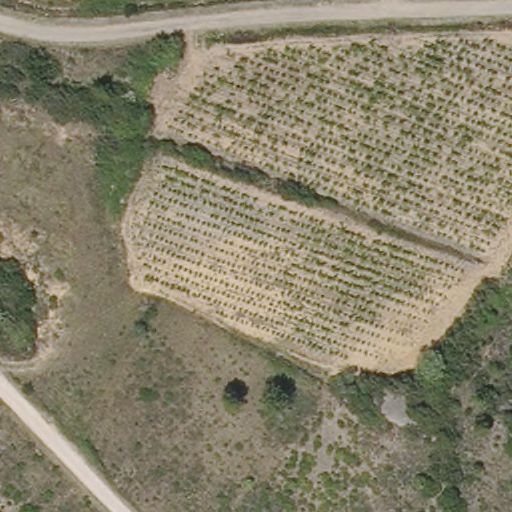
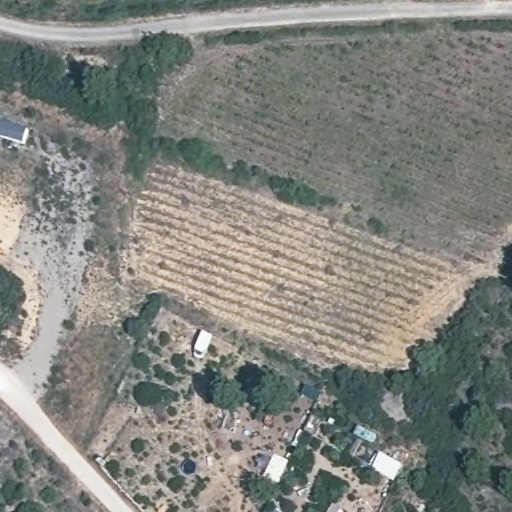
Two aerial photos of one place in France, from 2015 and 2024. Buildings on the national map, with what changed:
[]

